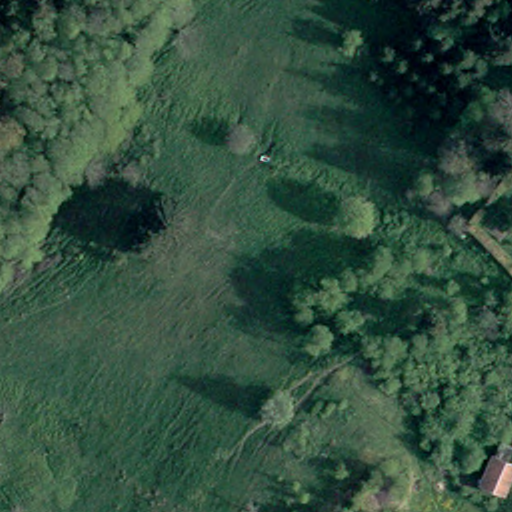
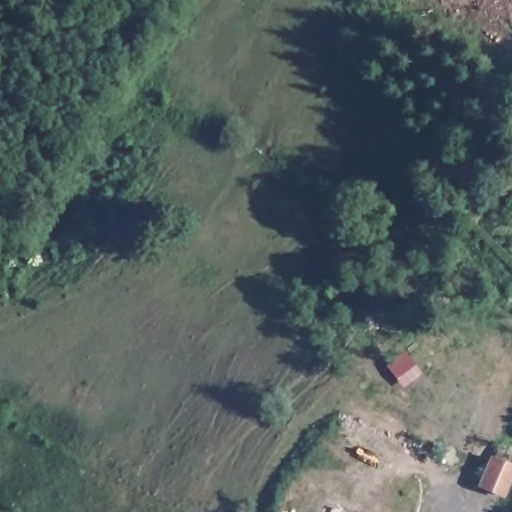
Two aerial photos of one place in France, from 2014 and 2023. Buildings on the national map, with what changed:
unchanged [(491,463),(492,463),(497,454),(498,448),(512,454),(510,460),(505,469),(512,472),(512,479),(502,501),(480,491),(491,463)]

